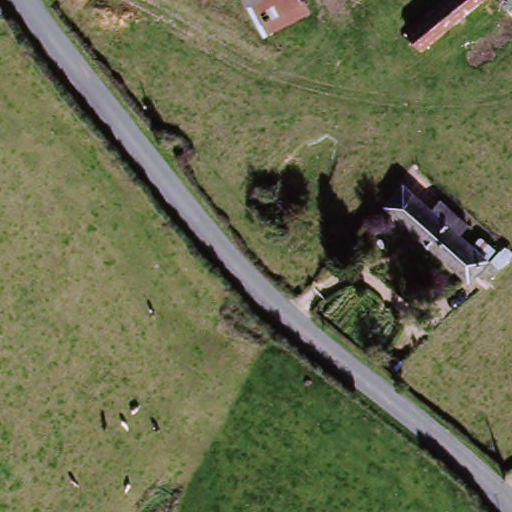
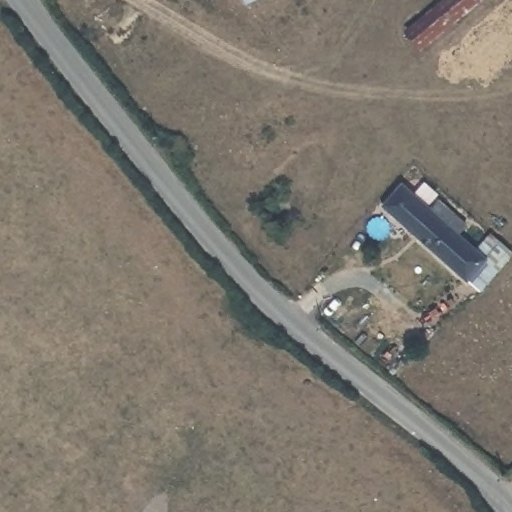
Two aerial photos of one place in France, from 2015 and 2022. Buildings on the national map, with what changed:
unchanged [(308,0),(315,10),(264,38),(244,0),(308,0)]
unchanged [(483,0),(425,48),(412,32),(450,0),(483,0)]
unchanged [(436,203),(461,226),(454,235),(481,260),(461,280),(380,207),(399,187),(427,212),(436,203)]

